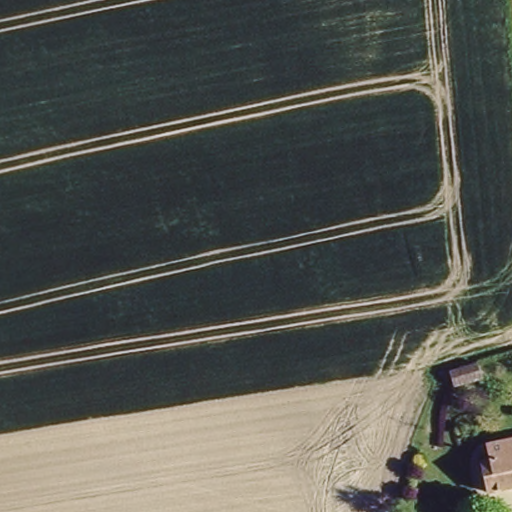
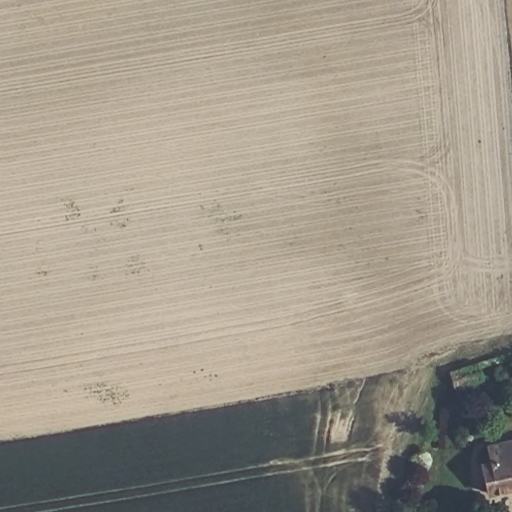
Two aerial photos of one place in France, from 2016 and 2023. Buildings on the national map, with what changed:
unchanged [(449,375),(475,368),(479,384),(450,391),(447,377),(449,375)]
unchanged [(504,411),(497,375),(512,372),(512,409),(504,411)]
unchanged [(484,491),(477,461),(487,459),(484,444),(512,438),(512,485),(484,491)]

